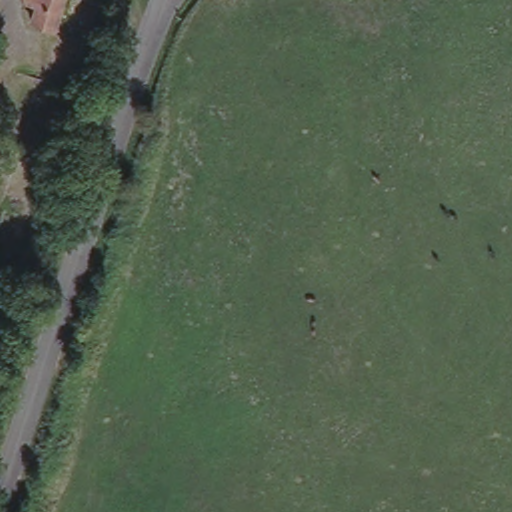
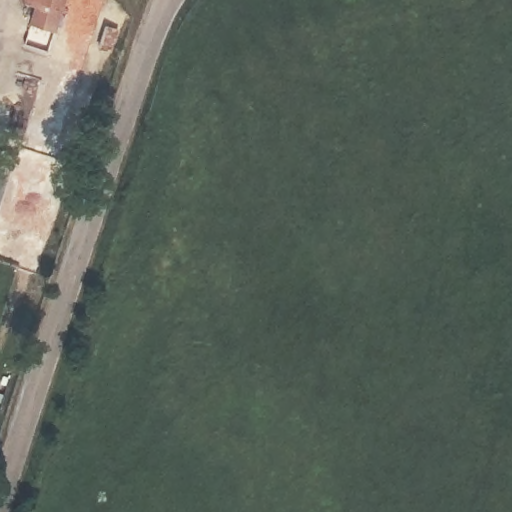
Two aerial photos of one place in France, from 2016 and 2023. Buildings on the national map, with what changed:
unchanged [(65,0),(55,31),(30,22),(36,6),(21,2),(22,0),(65,0)]

